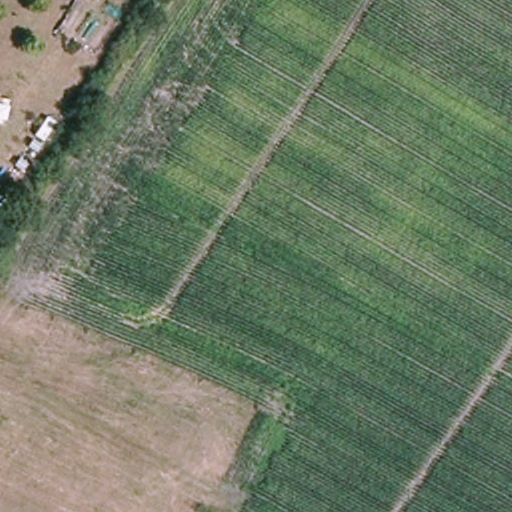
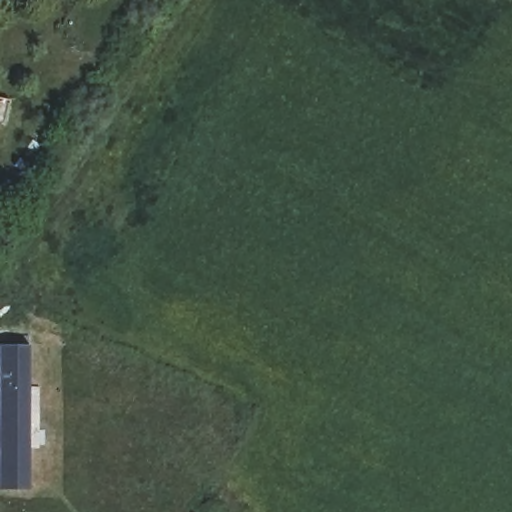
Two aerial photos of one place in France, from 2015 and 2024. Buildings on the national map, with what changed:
unchanged [(0,102),(0,97),(1,97),(0,102)]
new [(26,483),(0,484),(0,343),(25,342),(26,483)]

